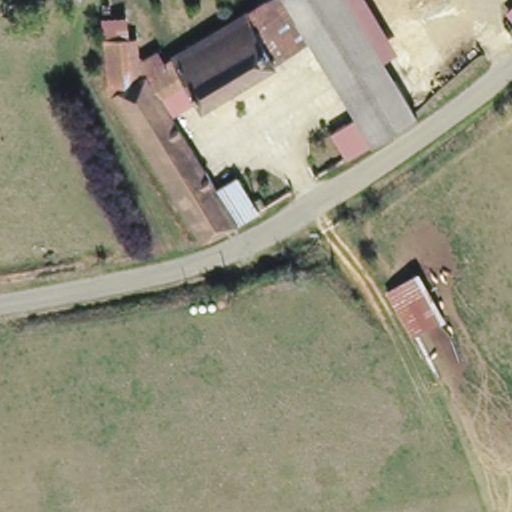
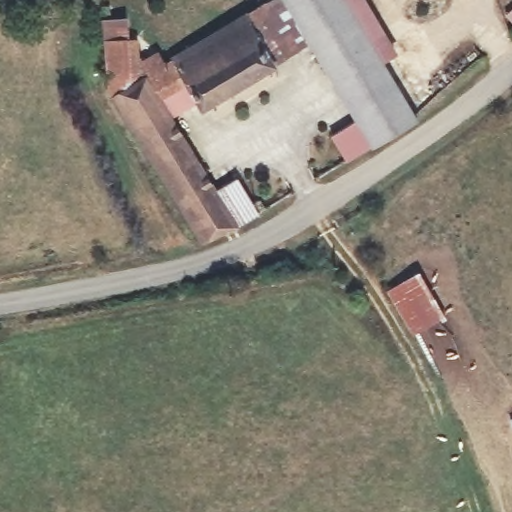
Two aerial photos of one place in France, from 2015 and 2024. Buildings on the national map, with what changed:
unchanged [(243,9),(257,0),(287,0),(310,38),(273,59),(243,9)]
unchanged [(328,135),(355,119),(310,38),(287,0),(342,0),(411,119),(369,141),(340,158),(328,135)]
unchanged [(167,54),(243,9),(273,59),(199,103),(191,92),(167,54)]
unchanged [(254,207),(233,219),(197,239),(105,89),(102,34),(122,33),(124,77),(144,68),(167,108),(211,182),(230,171),(254,207)]
unchanged [(167,108),(144,68),(167,54),(191,92),(167,108)]
unchanged [(433,313),(412,323),(390,286),(412,272),(433,313)]

